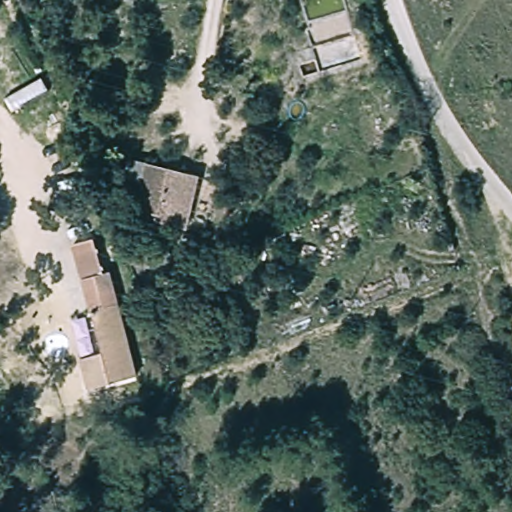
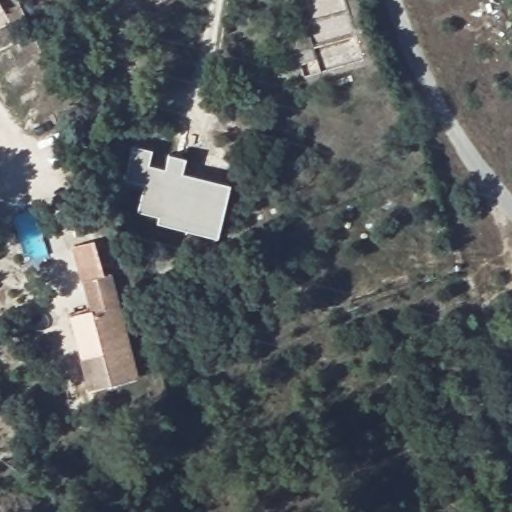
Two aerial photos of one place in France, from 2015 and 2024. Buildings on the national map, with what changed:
unchanged [(189,173),(179,219),(139,210),(149,164),(189,173)]
new [(230,184),(217,237),(158,222),(160,215),(179,219),(189,176),(230,184)]
unchanged [(92,240),(102,275),(106,273),(135,377),(84,390),(76,362),(102,354),(71,245),(92,240)]

